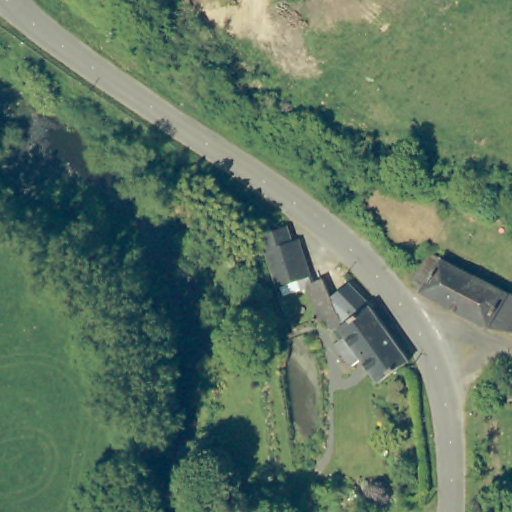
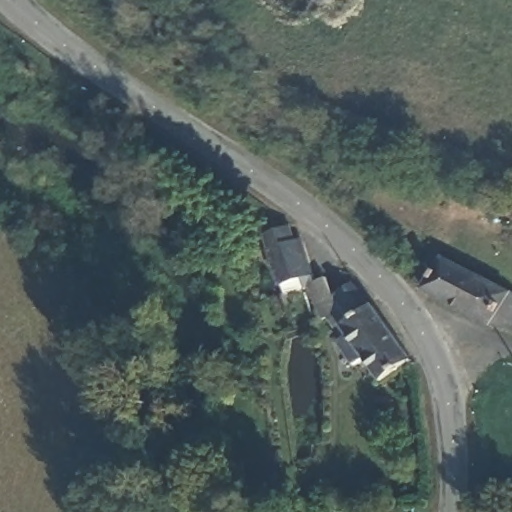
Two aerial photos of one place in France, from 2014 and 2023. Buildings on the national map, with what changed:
unchanged [(319,279),(328,275),(347,322),(373,303),(406,350),(412,359),(379,381),(363,361),(355,367),(338,344),(342,340),(326,318),(322,320),(307,285),(287,293),(283,286),(270,251),(265,237),(287,227),(294,241),(302,238),(319,279)]
unchanged [(456,311),(423,295),(411,282),(426,255),(473,280),(456,311)]
unchanged [(512,332),(489,328),(456,311),(473,280),(512,301),(512,332)]

